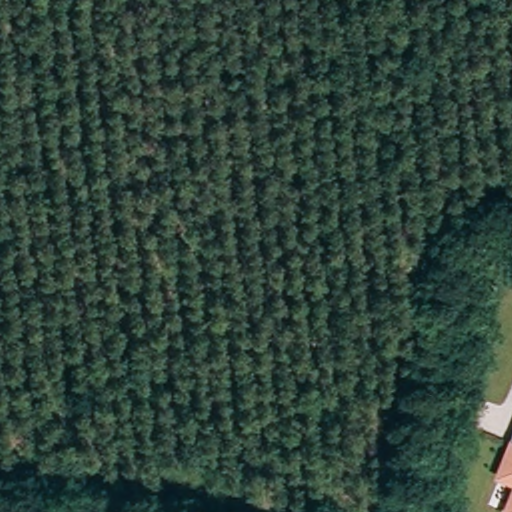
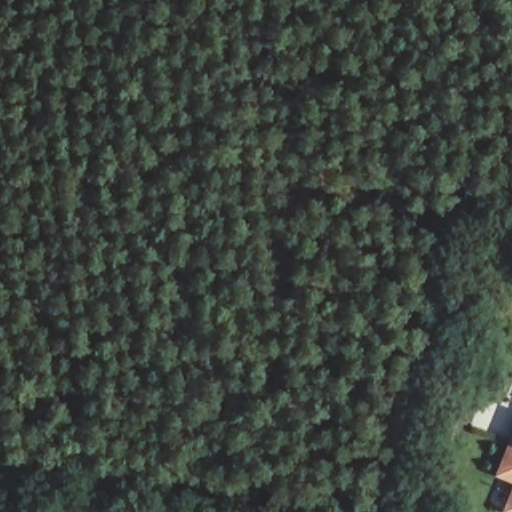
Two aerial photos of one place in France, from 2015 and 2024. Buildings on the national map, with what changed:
unchanged [(497,468),(509,435),(512,426),(512,473),(497,468)]
unchanged [(507,504),(512,488),(512,506),(507,504)]

